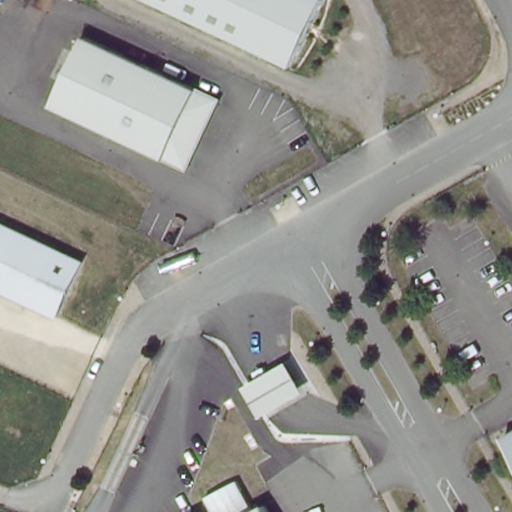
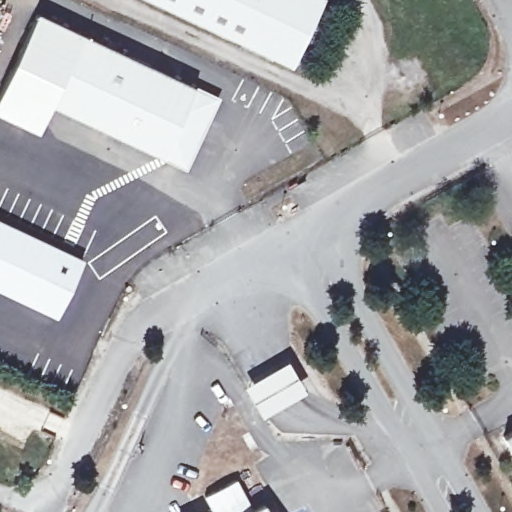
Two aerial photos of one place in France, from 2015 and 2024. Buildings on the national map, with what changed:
unchanged [(292,67),(149,0),(323,0),(292,67)]
new [(38,130),(0,113),(0,92),(37,12),(85,35),(51,103),(38,130)]
unchanged [(219,98),(186,167),(51,103),(85,35),(219,98)]
unchanged [(81,260),(56,318),(0,291),(0,223),(81,260)]
new [(262,416),(245,389),(257,382),(255,379),(287,360),(305,390),(262,416)]
unchanged [(512,436),(512,465),(499,443),(512,436)]

